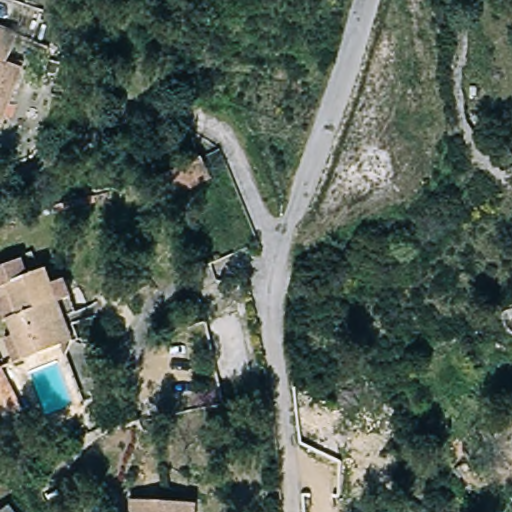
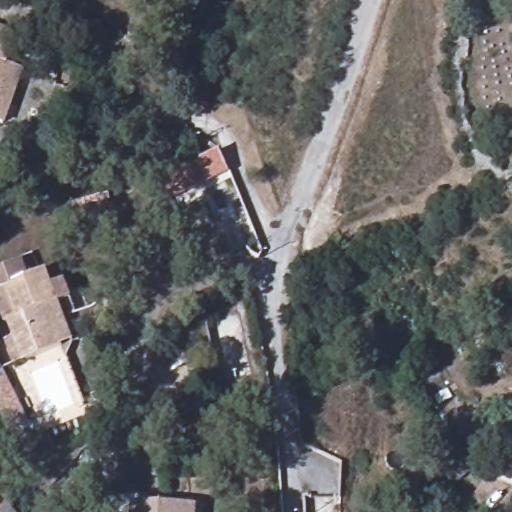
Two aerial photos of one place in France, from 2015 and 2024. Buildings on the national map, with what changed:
unchanged [(23,70),(5,124),(0,122),(0,30),(17,35),(8,65),(23,70)]
unchanged [(212,177),(165,198),(155,178),(167,172),(202,156),(212,177)]
unchanged [(73,336),(21,357),(5,319),(16,314),(5,285),(46,268),(73,336)]
unchanged [(0,416),(0,377),(15,409),(0,416)]
unchanged [(0,510),(5,506),(10,512),(0,512),(0,510)]
unchanged [(187,512),(124,512),(124,507),(187,510),(187,512)]

